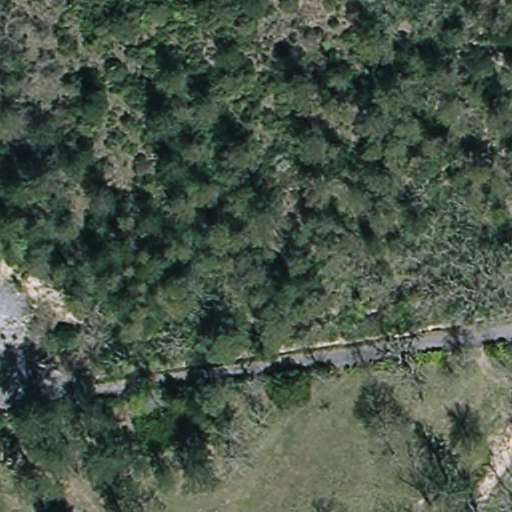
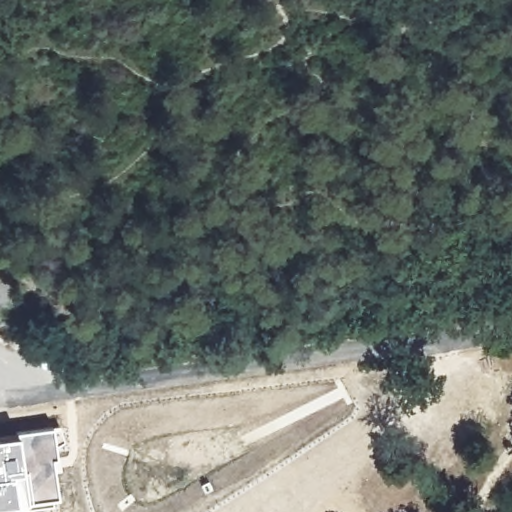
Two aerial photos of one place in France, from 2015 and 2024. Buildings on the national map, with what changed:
new [(17,434),(52,427),(55,457),(52,457),(57,497),(25,506),(0,510),(0,438),(17,434)]

